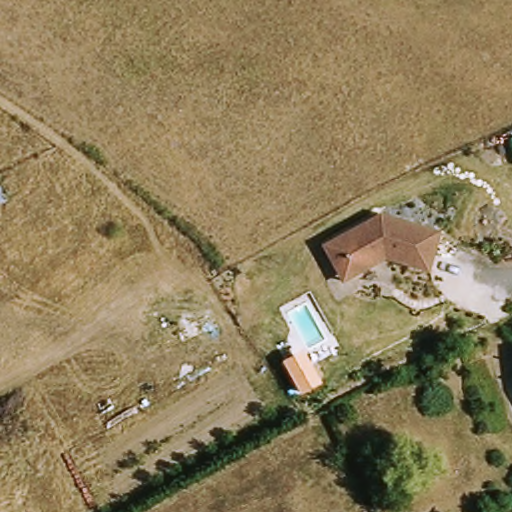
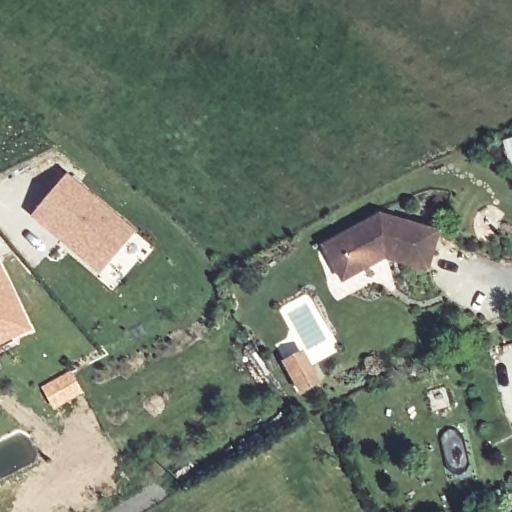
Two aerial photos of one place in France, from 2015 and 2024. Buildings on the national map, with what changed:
new [(512,138),(512,160),(506,141),(512,138)]
new [(101,275),(32,218),(67,174),(137,232),(101,275)]
unchanged [(324,244),(335,237),(381,212),(441,228),(430,267),(388,255),(356,272),(345,279),(324,244)]
new [(29,329),(0,343),(0,270),(29,329)]
new [(301,397),(283,363),(305,350),(324,384),(301,397)]

